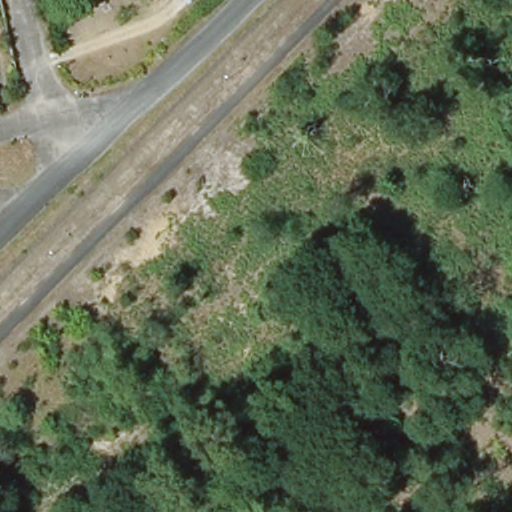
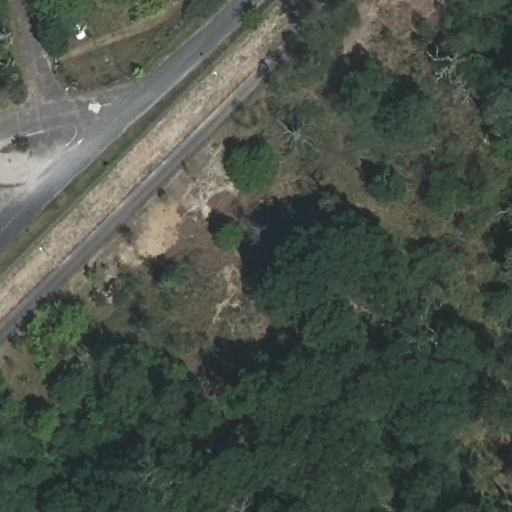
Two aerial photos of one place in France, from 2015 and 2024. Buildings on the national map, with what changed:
[]

